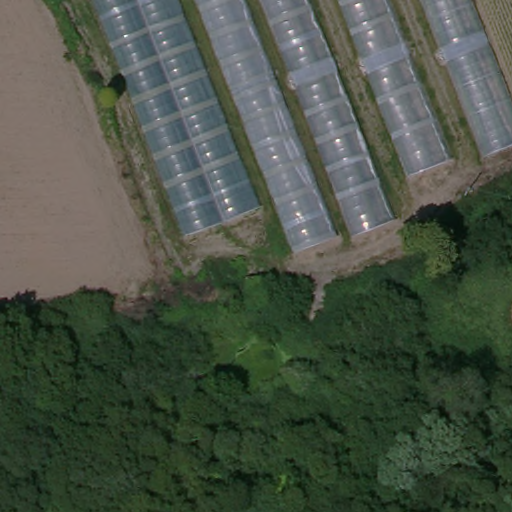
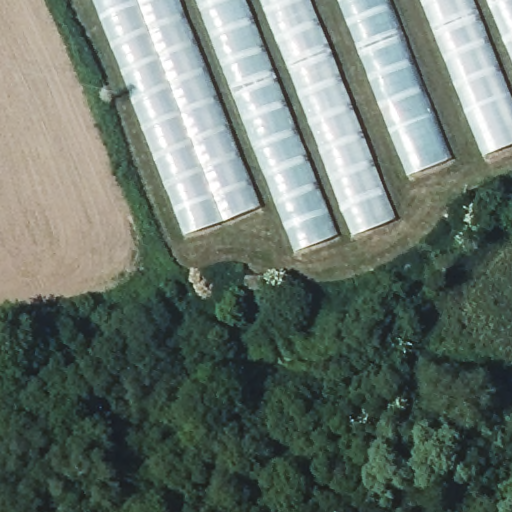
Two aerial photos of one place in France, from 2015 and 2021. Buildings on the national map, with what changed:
unchanged [(449,162),(382,187),(393,220),(353,238),(350,231),(292,253),(273,207),(185,237),(93,0),(386,0),(449,162)]
unchanged [(484,160),(420,0),(471,0),(512,107),(512,145),(484,160)]
new [(488,0),(512,0),(512,63),(488,0)]

